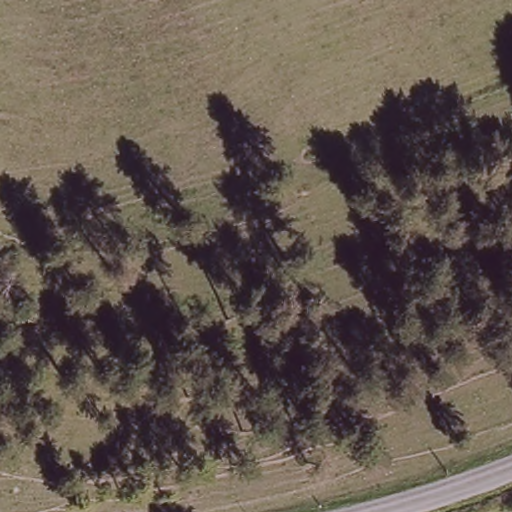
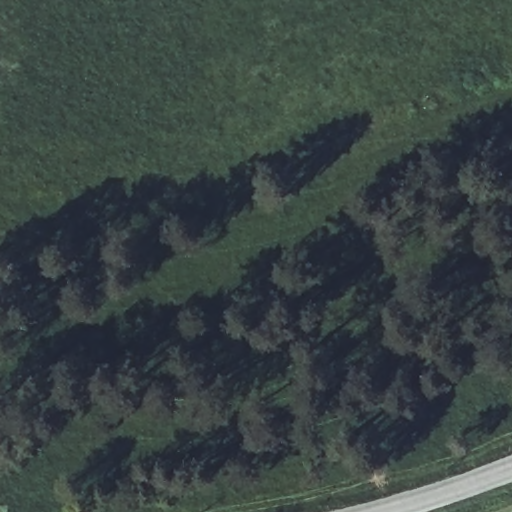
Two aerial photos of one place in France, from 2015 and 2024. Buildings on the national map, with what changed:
[]

